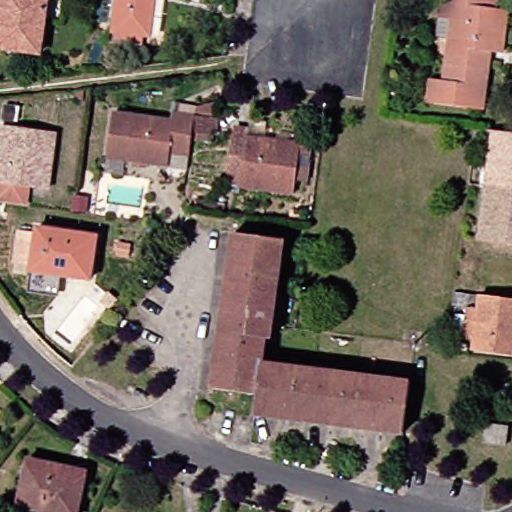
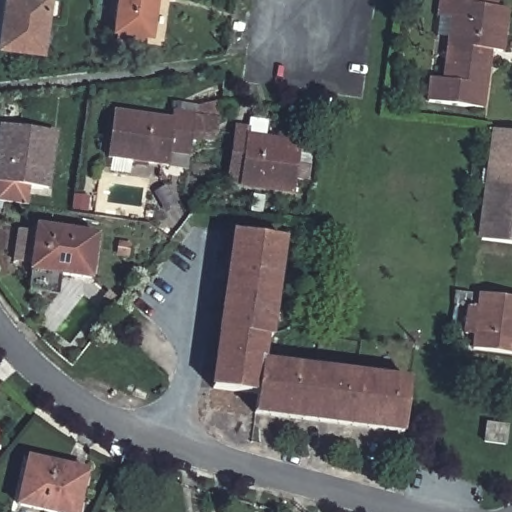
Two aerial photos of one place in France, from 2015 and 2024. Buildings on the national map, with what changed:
unchanged [(50,54),(9,49),(9,45),(1,45),(7,0),(58,0),(50,54)]
unchanged [(118,45),(119,33),(116,32),(121,0),(160,0),(154,37),(148,37),(147,49),(118,45)]
unchanged [(452,68),(459,20),(444,18),(445,12),(447,0),(488,0),(487,7),(502,10),(512,11),(512,18),(511,22),(510,31),(506,54),(495,52),(491,75),(452,68)]
unchanged [(432,102),(435,79),(450,81),(452,68),(491,75),(485,109),(432,102)]
unchanged [(176,155),(175,168),(114,160),(120,114),(178,122),(179,114),(202,117),(208,117),(206,130),(200,130),(196,157),(176,155)]
unchanged [(37,132),(30,189),(0,184),(0,130),(0,127),(37,132)]
unchanged [(234,184),(241,131),(254,134),(253,137),(308,144),(300,195),(247,187),(247,186),(234,184)]
unchanged [(512,187),(497,185),(504,131),(512,132),(512,187)]
unchanged [(512,243),(489,240),(497,185),(512,187),(512,243)]
unchanged [(99,245),(93,287),(36,277),(36,272),(17,269),(22,238),(41,242),(42,235),(99,245)]
unchanged [(272,340),(267,339),(264,363),(259,396),(215,391),(236,235),(285,241),(279,289),(272,340)]
unchanged [(481,310),(483,292),(512,296),(512,351),(476,347),(481,310)]
unchanged [(405,435),(256,416),(259,396),(264,363),(412,383),(405,435)]
unchanged [(504,429),(501,447),(481,445),(483,427),(504,429)]
unchanged [(34,462),(35,457),(93,472),(92,477),(83,512),(52,512),(24,505),(34,462)]

